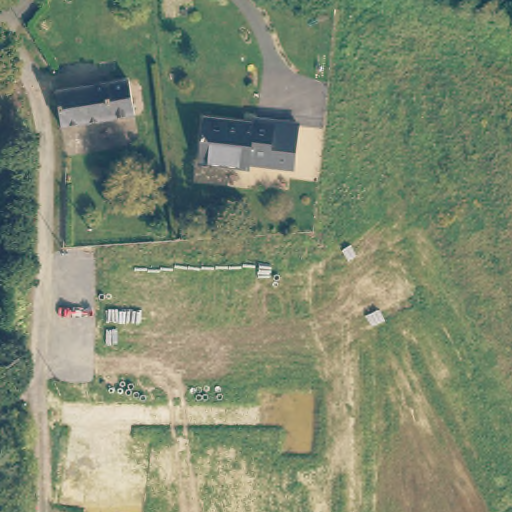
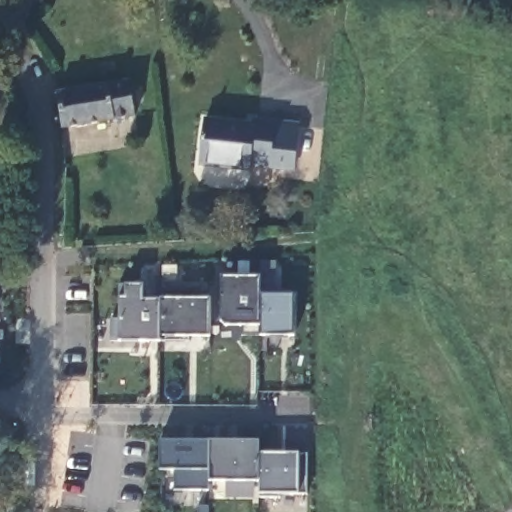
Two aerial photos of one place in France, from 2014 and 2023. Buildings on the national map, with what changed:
unchanged [(39,4),(35,0),(43,0),(39,4)]
unchanged [(46,88),(119,77),(125,110),(51,123),(46,88)]
unchanged [(251,119),(252,113),(300,119),(295,159),(245,156),(244,163),(197,157),(202,113),(251,119)]
new [(227,325),(221,319),(220,277),(262,276),(262,295),(261,325),(227,325)]
new [(143,285),(142,300),(160,300),(159,340),(120,340),(110,340),(111,317),(119,317),(119,298),(119,284),(126,284),(143,285)]
new [(293,296),(292,337),(261,335),(262,295),(293,296)]
new [(210,298),(210,335),(159,335),(160,300),(210,298)]
new [(210,441),(261,442),(261,453),(298,454),(306,454),(306,493),(298,492),(259,492),(259,481),(210,480),(211,489),(175,489),(175,470),(161,469),(160,439),(210,441)]

